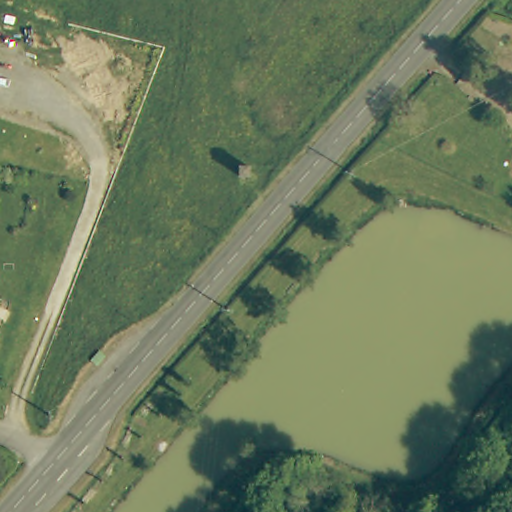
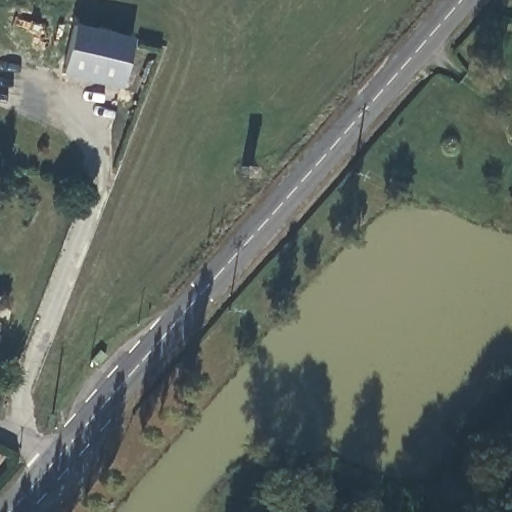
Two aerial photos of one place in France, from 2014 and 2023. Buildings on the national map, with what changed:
new [(119,88),(61,75),(72,24),(130,38),(119,88)]
demolished [(3,49),(5,49),(0,72),(0,28),(8,29),(3,49)]

